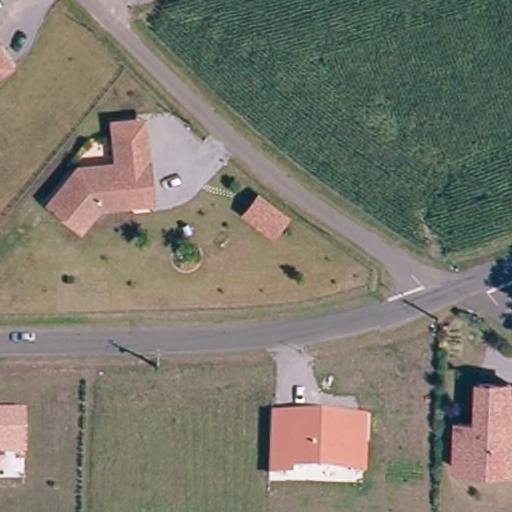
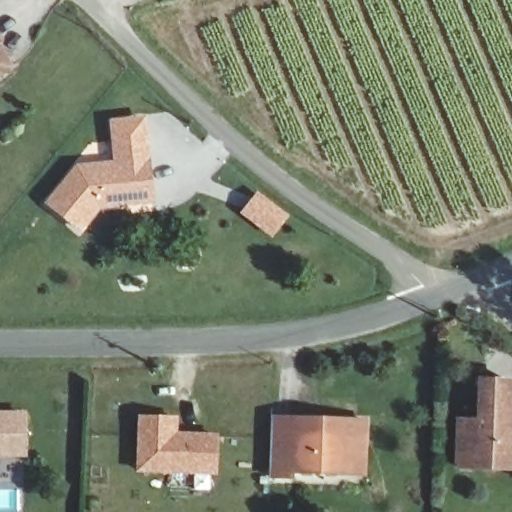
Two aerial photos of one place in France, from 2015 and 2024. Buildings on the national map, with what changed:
unchanged [(0,74),(0,50),(11,65),(0,74)]
unchanged [(134,201),(100,205),(82,227),(50,202),(80,166),(118,161),(115,135),(114,120),(145,117),(147,132),(152,189),(154,199),(134,201)]
unchanged [(260,189),(283,206),(271,223),(247,205),(260,189)]
unchanged [(473,466),(453,465),(456,420),(477,421),(480,380),(510,382),(510,392),(512,393),(512,470),(473,466)]
unchanged [(27,458),(0,459),(0,412),(27,411),(27,458)]
unchanged [(345,475),(292,471),(292,477),(271,475),(271,471),(273,447),(275,416),(295,418),(369,423),(367,441),(365,477),(345,475)]
new [(180,418),(179,433),(218,435),(217,476),(135,473),(137,418),(180,418)]

